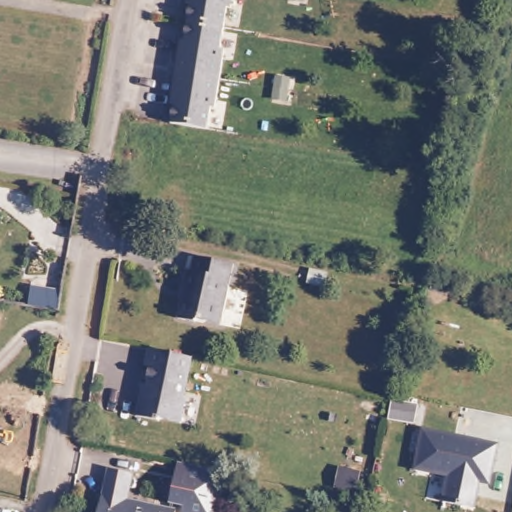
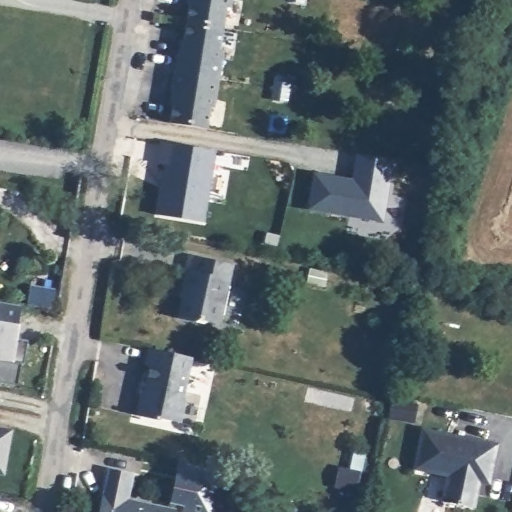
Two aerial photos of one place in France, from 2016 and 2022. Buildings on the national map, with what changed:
unchanged [(194,0),(236,0),(235,5),(231,5),(227,26),(221,25),(190,20),(194,0)]
unchanged [(180,89),(176,89),(181,52),(185,53),(190,20),(221,25),(227,26),(224,48),(228,49),(219,106),(215,106),(211,129),(174,123),(180,89)]
new [(216,150),(204,223),(156,215),(163,164),(156,162),(160,141),(216,150)]
new [(314,173),(352,179),(355,155),(392,160),(383,221),(308,209),(314,173)]
unchanged [(227,255),(218,315),(175,309),(178,263),(186,263),(188,247),(227,255)]
unchanged [(25,301),(31,280),(63,286),(59,307),(25,301)]
unchanged [(23,360),(13,358),(0,356),(0,321),(18,324),(15,337),(27,340),(23,360)]
unchanged [(189,352),(181,392),(185,394),(180,417),(159,413),(159,416),(136,411),(139,390),(145,390),(147,375),(144,375),(147,360),(144,358),(148,344),(189,352)]
unchanged [(378,381),(402,386),(399,403),(375,399),(378,381)]
unchanged [(9,428),(1,475),(0,475),(0,427),(9,428)]
unchanged [(487,483),(480,482),(475,508),(444,502),(450,475),(416,468),(424,430),(498,445),(493,469),(490,484),(487,483)]
unchanged [(347,452),(343,470),(324,466),(328,447),(347,452)]
unchanged [(167,505),(177,462),(225,471),(216,512),(172,512),(173,506),(167,505)]
unchanged [(96,512),(101,491),(105,466),(127,470),(123,495),(173,506),(172,512),(96,512)]

